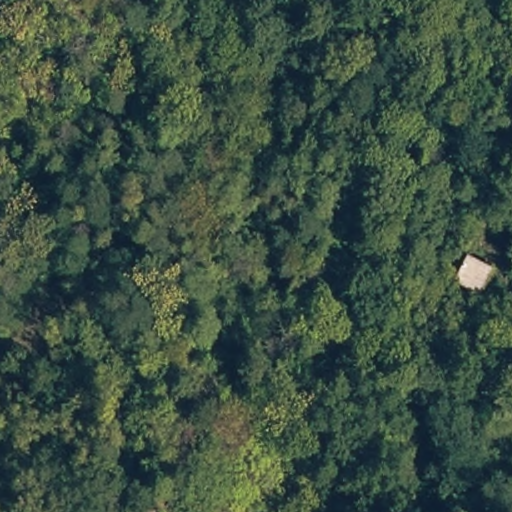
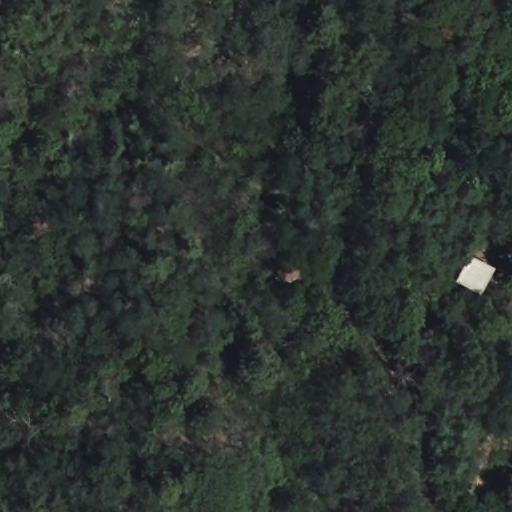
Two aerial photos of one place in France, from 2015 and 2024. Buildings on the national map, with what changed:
unchanged [(480,296),(448,280),(466,254),(494,266),(480,296)]

